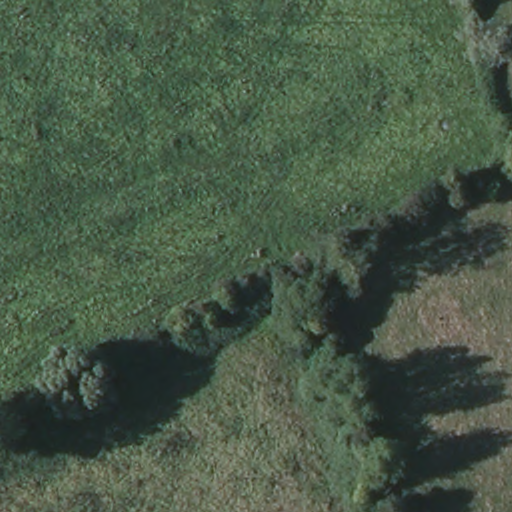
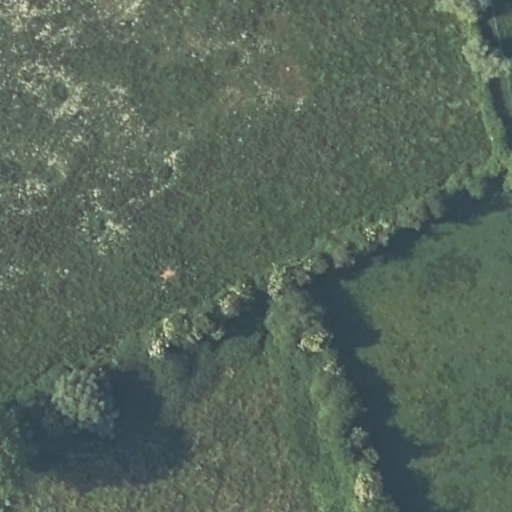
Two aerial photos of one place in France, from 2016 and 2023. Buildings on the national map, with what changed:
[]

